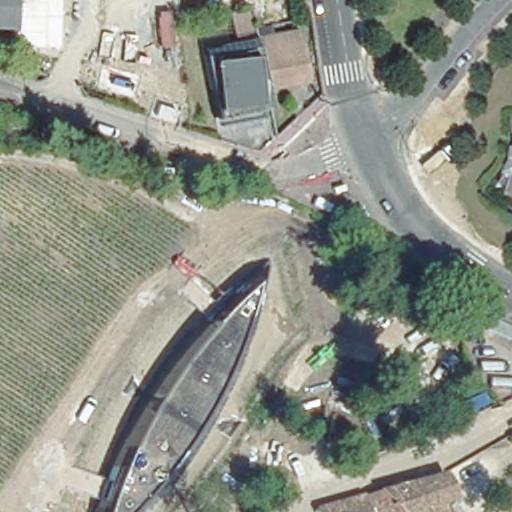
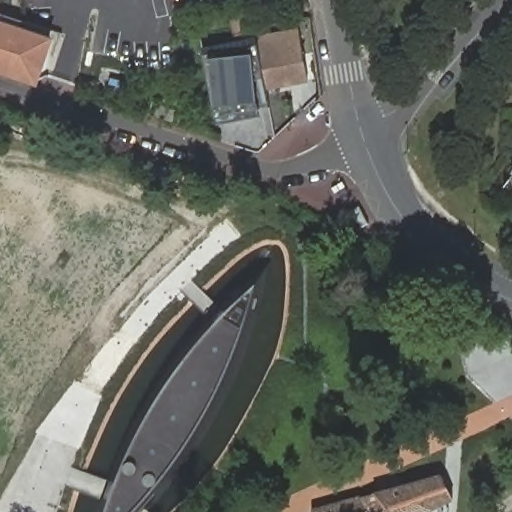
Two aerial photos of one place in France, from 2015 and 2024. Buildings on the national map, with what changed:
unchanged [(0,23),(0,0),(13,0),(12,23),(0,23)]
unchanged [(251,31),(234,35),(229,12),(246,8),(251,31)]
new [(12,23),(55,37),(39,83),(0,71),(0,23),(12,23)]
unchanged [(271,36),(300,30),(308,79),(268,86),(260,38),(271,36)]
unchanged [(268,86),(274,112),(219,124),(215,107),(205,61),(202,49),(260,38),(268,86)]
unchanged [(249,322),(235,358),(220,390),(202,423),(182,454),(162,482),(140,508),(137,512),(106,512),(110,497),(122,469),(140,433),(155,408),(171,383),(190,357),(208,334),(229,313),(256,285),(249,322)]
unchanged [(305,511),(305,510),(355,497),(433,476),(447,499),(432,507),(435,512),(306,512),(305,511)]

